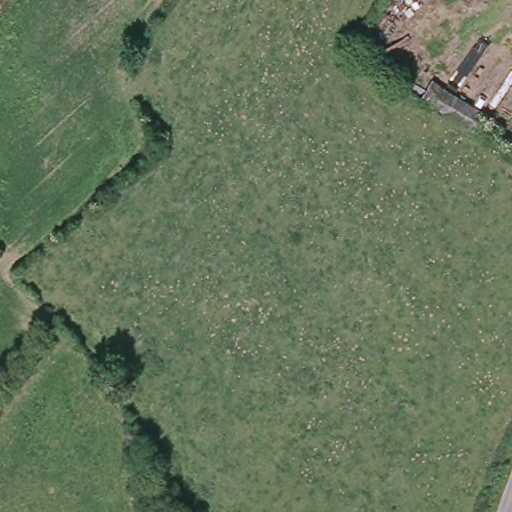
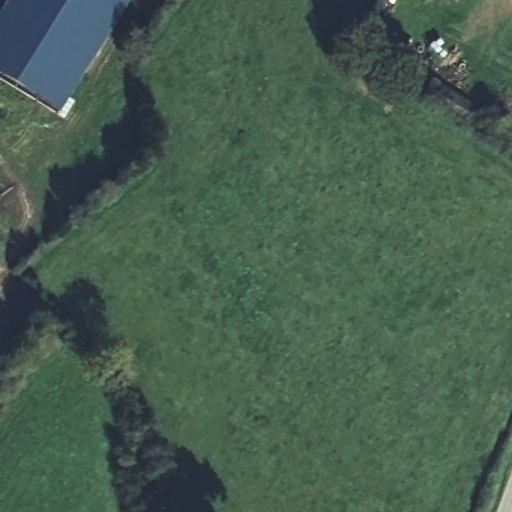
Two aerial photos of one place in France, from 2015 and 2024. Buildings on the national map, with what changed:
new [(9,0),(130,0),(57,114),(0,78),(0,15),(9,0)]
unchanged [(401,61),(486,114),(491,103),(505,113),(487,147),(390,88),(396,74),(401,61)]

